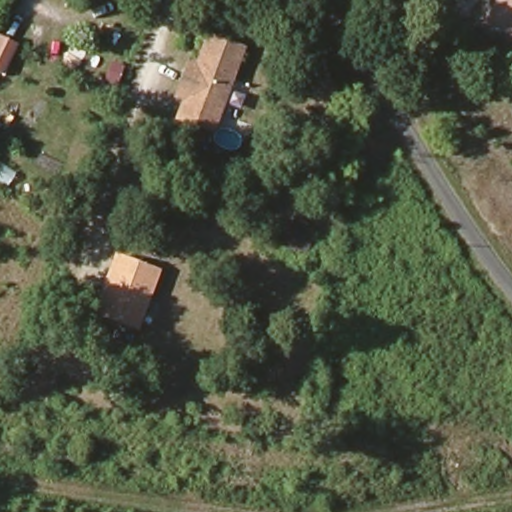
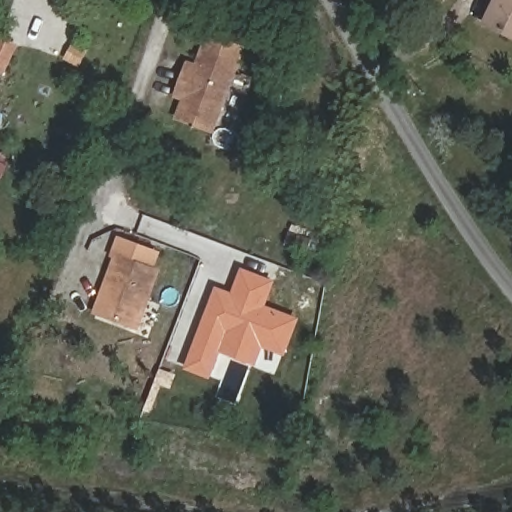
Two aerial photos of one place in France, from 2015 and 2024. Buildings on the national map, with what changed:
unchanged [(487,20),(497,0),(512,0),(512,33),(487,20)]
unchanged [(212,126),(178,115),(185,93),(176,90),(183,69),(192,72),(206,32),(240,43),(212,126)]
unchanged [(0,168),(0,159),(4,161),(0,168)]
unchanged [(140,327),(99,313),(119,256),(160,271),(140,327)]
new [(232,292),(241,268),(275,281),(265,305),(299,318),(284,357),(262,347),(255,366),(220,351),(210,378),(184,369),(215,285),(232,292)]

